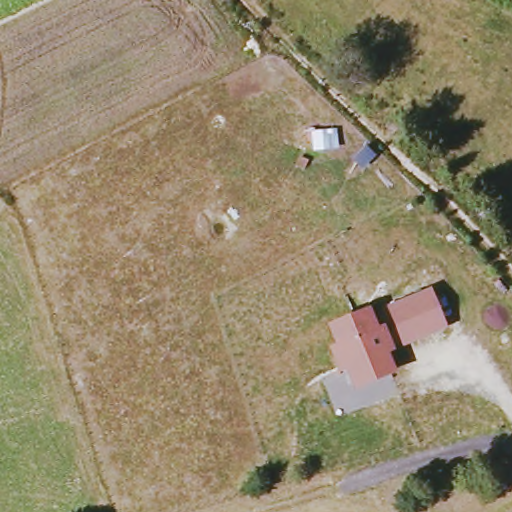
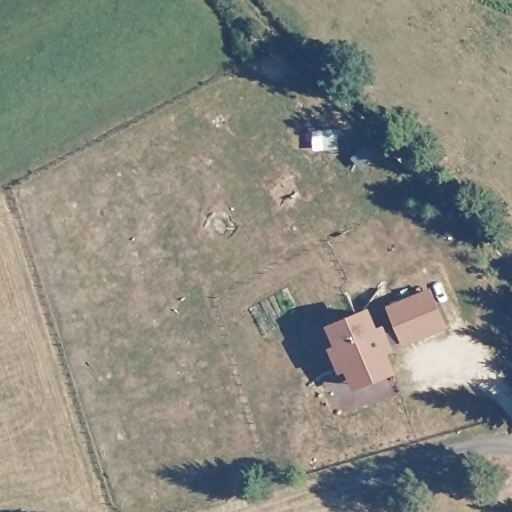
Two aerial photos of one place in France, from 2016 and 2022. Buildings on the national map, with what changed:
unchanged [(448,330),(405,347),(388,308),(432,290),(448,330)]
unchanged [(378,330),(386,328),(396,352),(391,356),(398,376),(356,392),(348,373),(343,375),(330,351),(337,347),(328,327),(372,310),(378,330)]

